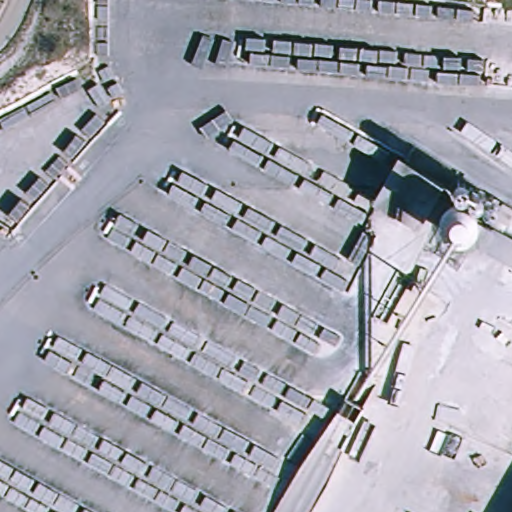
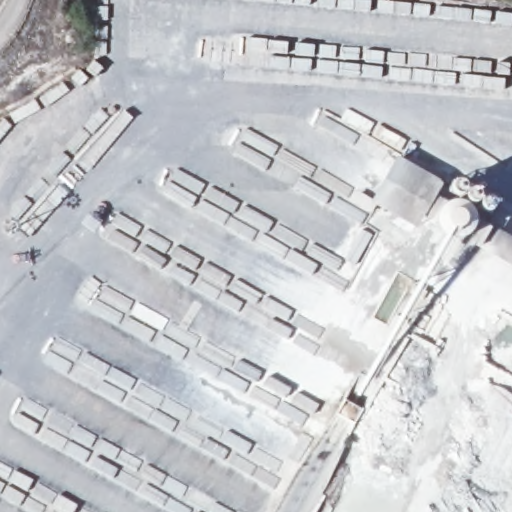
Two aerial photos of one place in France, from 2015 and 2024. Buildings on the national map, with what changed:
unchanged [(477,250),(466,232),(454,241),(442,245),(429,238),(414,227),(373,196),(397,154),(444,190),(462,200),(467,205),(466,213),(489,225),(512,238),(512,268),(477,250)]

